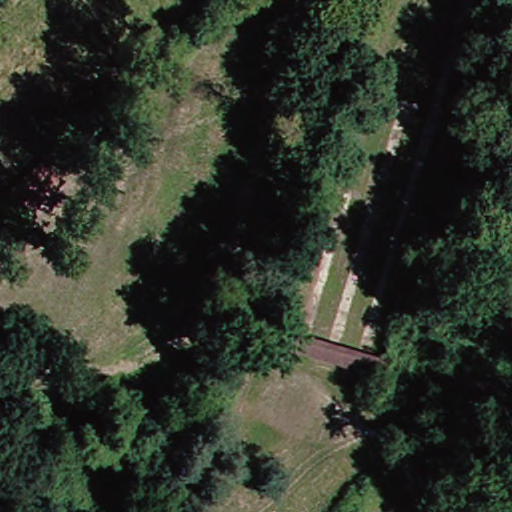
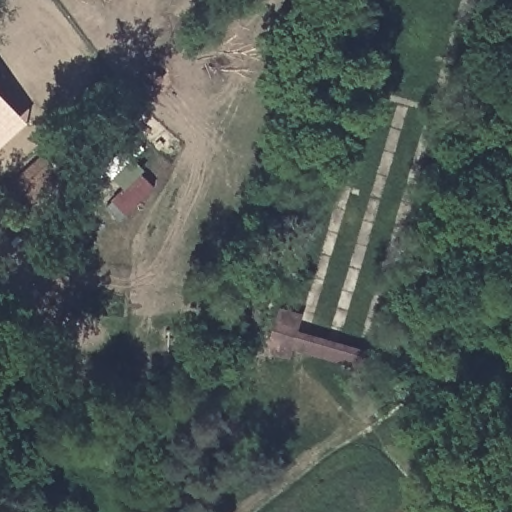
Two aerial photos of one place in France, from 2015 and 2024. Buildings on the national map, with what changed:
new [(0,88),(30,122),(0,150),(0,88)]
unchanged [(31,212),(12,189),(51,157),(70,182),(31,212)]
unchanged [(388,358),(381,372),(302,349),(298,357),(271,348),(280,326),(388,358)]

